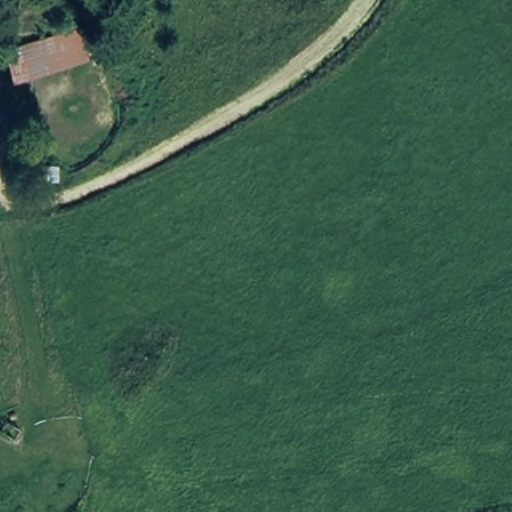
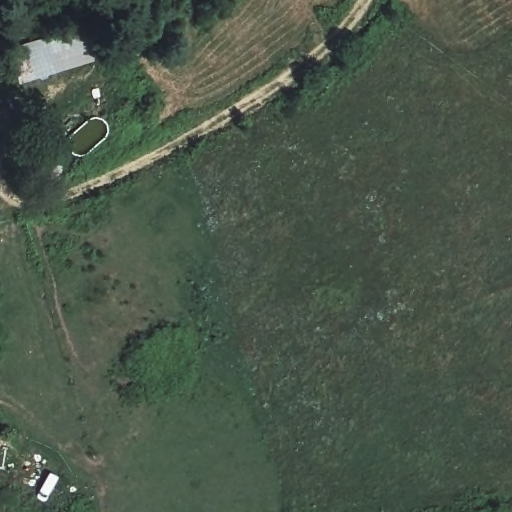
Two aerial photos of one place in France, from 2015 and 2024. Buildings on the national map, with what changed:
unchanged [(27,45),(87,26),(101,61),(39,78),(27,45)]

